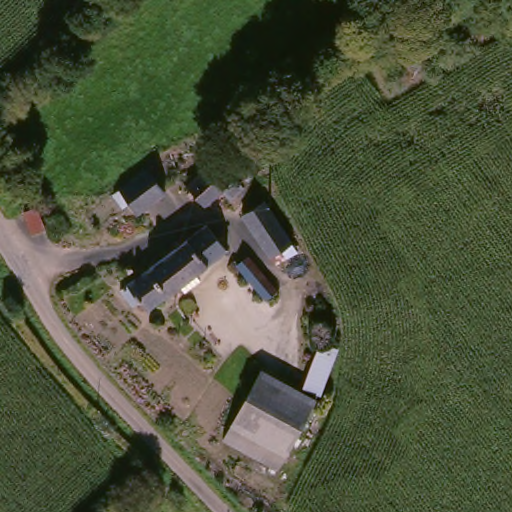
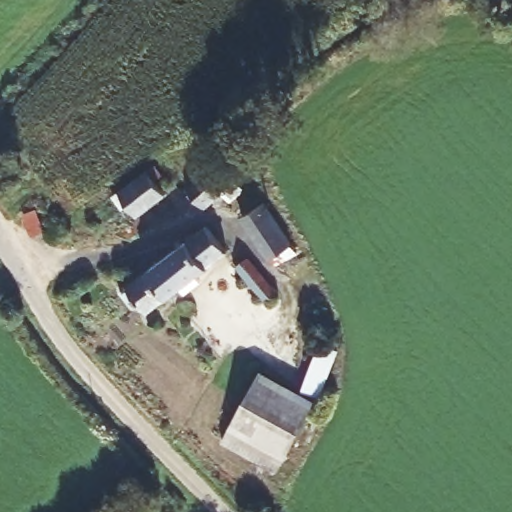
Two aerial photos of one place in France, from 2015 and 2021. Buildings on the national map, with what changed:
unchanged [(214,154),(241,185),(228,197),(217,187),(199,204),(181,184),(214,154)]
unchanged [(149,168),(165,187),(137,211),(131,205),(126,208),(116,195),(149,168)]
unchanged [(266,202),(293,242),(271,260),(244,217),(266,202)]
unchanged [(140,278),(209,225),(229,251),(171,297),(154,310),(149,305),(141,310),(127,290),(140,278)]
unchanged [(246,252),(278,292),(265,302),(234,261),(246,252)]
unchanged [(314,341),(337,343),(331,390),(305,387),(314,341)]
unchanged [(261,369),(319,397),(284,470),(226,442),(261,369)]

